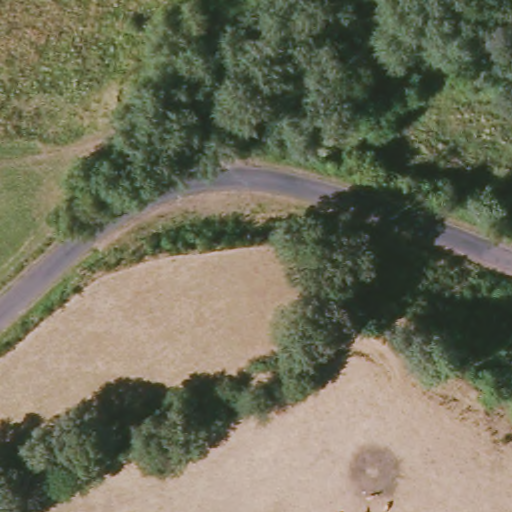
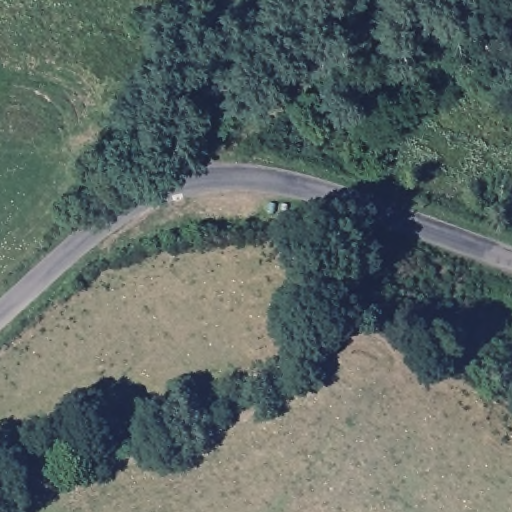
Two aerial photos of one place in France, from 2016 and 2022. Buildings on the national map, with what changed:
[]

